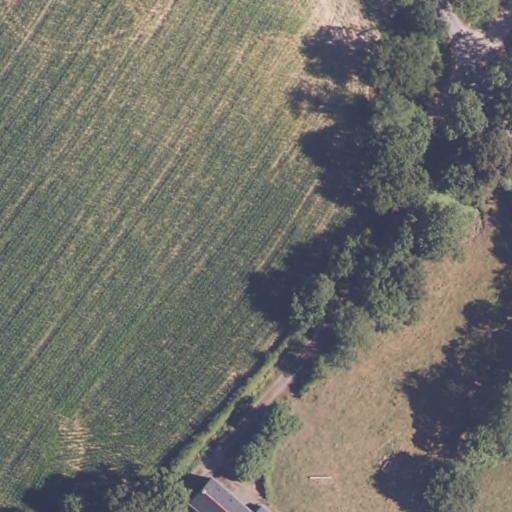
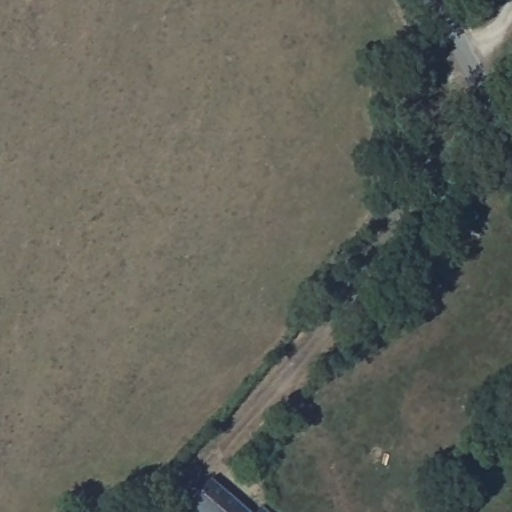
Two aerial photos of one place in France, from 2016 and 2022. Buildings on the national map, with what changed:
unchanged [(180,502),(203,477),(246,512),(193,512),(180,502)]
unchanged [(255,503),(270,512),(248,512),(255,503)]

